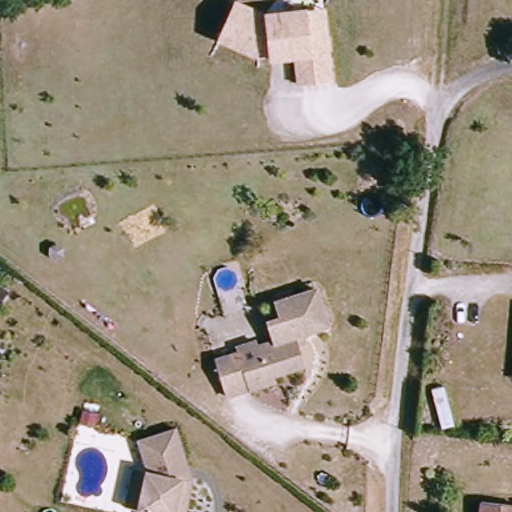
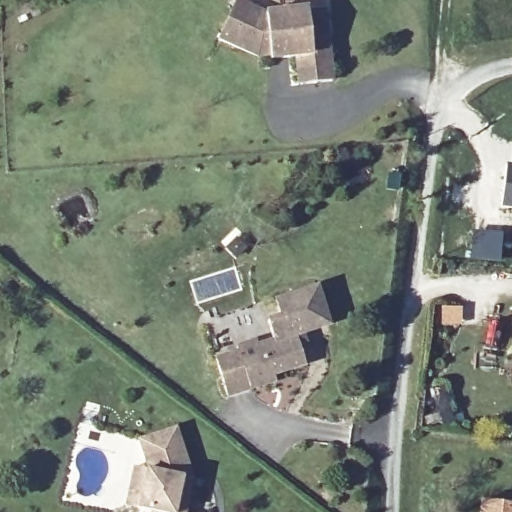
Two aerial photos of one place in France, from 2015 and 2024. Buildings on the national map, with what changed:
unchanged [(270,53),(255,54),(217,37),(234,0),(268,14),(308,10),(325,8),(327,35),(331,80),(299,84),(296,56),(288,56),(270,56),(270,53)]
new [(512,162),(512,208),(501,207),(507,161),(512,162)]
new [(471,230),(504,231),(502,262),(470,261),(471,230)]
unchanged [(267,321),(279,319),(275,303),(318,290),(329,326),(295,336),(305,365),(272,375),(272,381),(225,395),(214,360),(238,352),(242,365),(259,360),(255,346),(272,342),(267,321)]
unchanged [(178,427),(194,477),(186,512),(155,512),(139,508),(125,505),(134,467),(146,469),(140,439),(178,427)]
unchanged [(512,507),(512,512),(470,512),(471,505),(512,507)]

